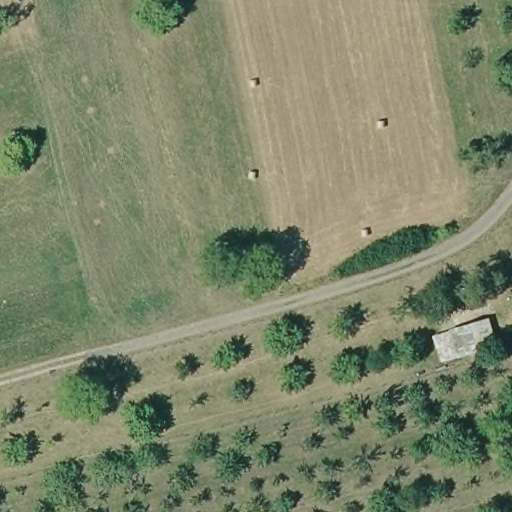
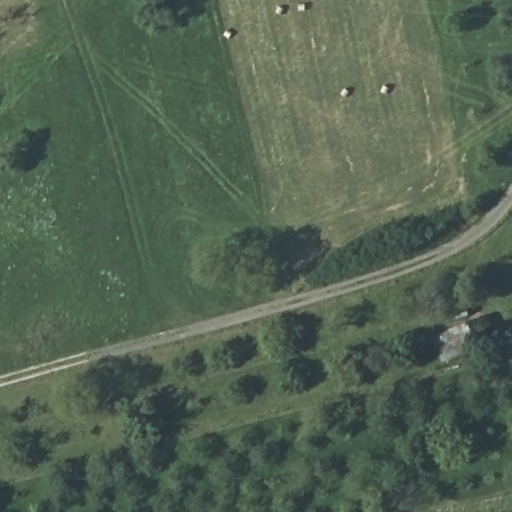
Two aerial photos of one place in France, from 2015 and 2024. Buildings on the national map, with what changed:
unchanged [(450,363),(443,332),(471,322),(469,299),(495,292),(506,342),(450,363)]

